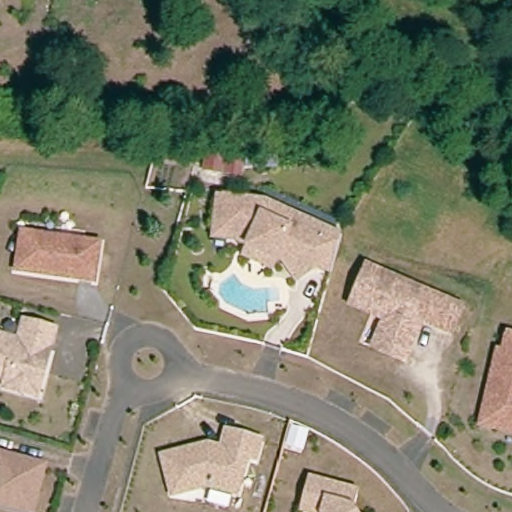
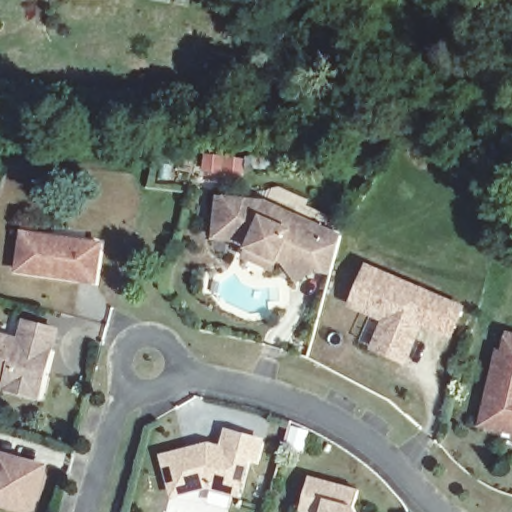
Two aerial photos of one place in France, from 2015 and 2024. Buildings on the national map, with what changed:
unchanged [(221,172),(205,170),(207,155),(223,157),(221,172)]
unchanged [(242,175),(226,173),(228,157),(244,160),(242,175)]
unchanged [(247,168),(247,158),(270,157),(277,159),(276,168),(247,168)]
unchanged [(284,262),(278,260),(274,270),(244,256),(248,247),(249,246),(235,240),(213,239),(214,234),(219,197),(266,202),(272,205),(342,236),(332,274),(317,270),(316,268),(298,281),(284,262)]
unchanged [(101,245),(95,282),(17,271),(23,234),(101,245)]
unchanged [(400,366),(368,353),(381,325),(346,310),(363,271),(458,312),(447,338),(418,326),(411,341),(400,366)]
unchanged [(211,293),(213,282),(221,283),(219,295),(211,293)]
unchanged [(5,387),(7,380),(0,378),(0,334),(21,340),(26,321),(57,330),(42,385),(39,396),(5,387)]
unchanged [(477,430),(482,410),(494,357),(499,358),(504,340),(512,341),(512,438),(492,433),(477,430)]
unchanged [(257,441),(252,460),(244,458),(234,495),(204,486),(169,495),(159,457),(205,446),(215,449),(219,450),(223,432),(257,441)]
unchanged [(45,468),(33,512),(29,512),(0,504),(0,456),(45,468)]
unchanged [(305,478),(355,491),(350,508),(353,512),(296,512),(305,478)]

